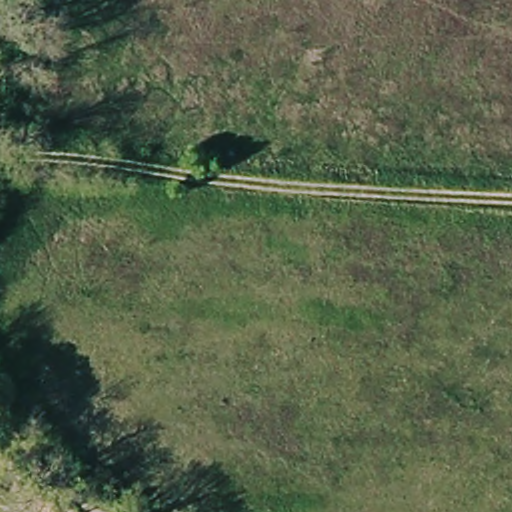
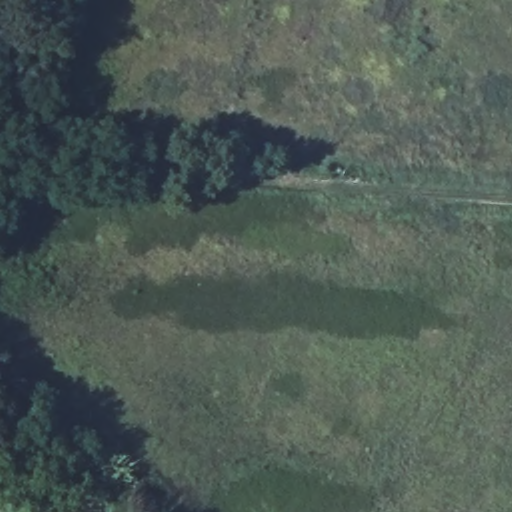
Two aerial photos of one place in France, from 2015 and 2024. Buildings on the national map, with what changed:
[]

